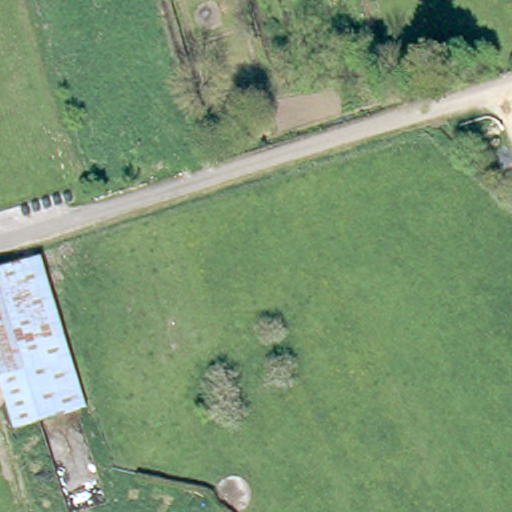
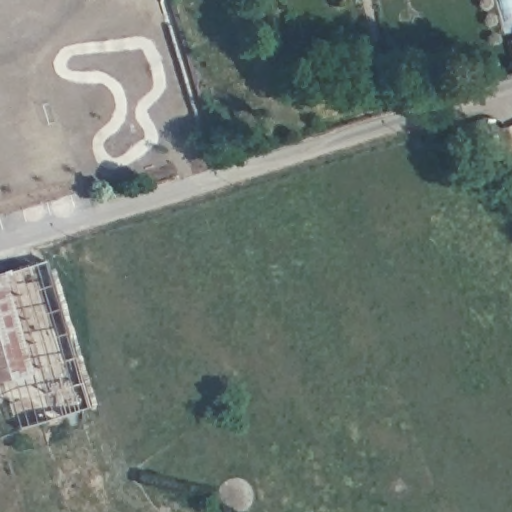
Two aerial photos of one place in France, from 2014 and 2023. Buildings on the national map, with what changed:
unchanged [(0,379),(0,274),(47,260),(92,407),(21,429),(5,377),(0,379)]

